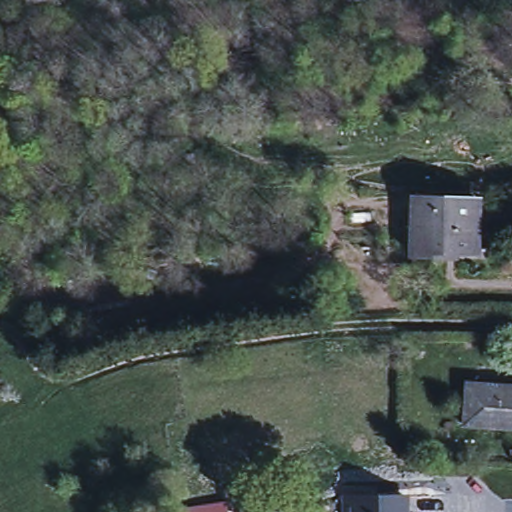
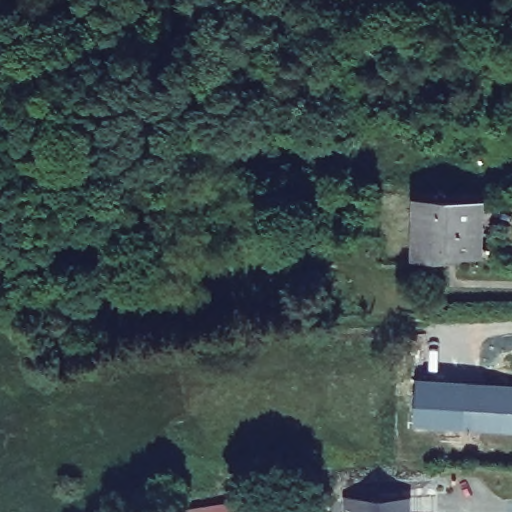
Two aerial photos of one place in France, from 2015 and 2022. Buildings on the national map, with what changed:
unchanged [(163,157),(171,156),(170,142),(185,140),(186,153),(213,150),(216,175),(166,179),(163,157)]
unchanged [(481,199),(479,251),(438,249),(438,255),(414,253),(416,197),(481,199)]
new [(466,424),(414,423),(417,386),(469,386),(466,424)]
unchanged [(512,427),(466,424),(469,386),(512,390),(512,427)]
unchanged [(408,497),(408,512),(348,512),(348,497),(408,497)]

